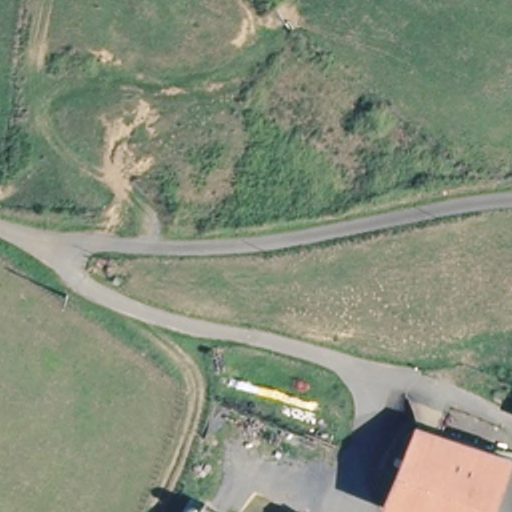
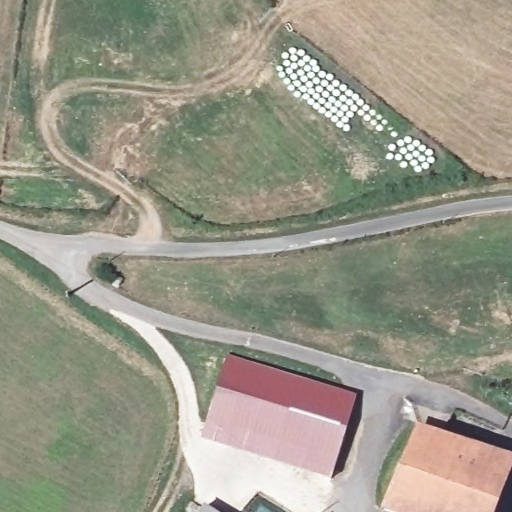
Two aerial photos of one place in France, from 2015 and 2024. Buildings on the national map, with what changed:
new [(228,356),(358,395),(333,476),(203,437),(228,356)]
unchanged [(490,512),(399,512),(386,506),(420,429),(512,462),(490,512)]
unchanged [(215,512),(199,512),(203,505),(215,512)]

